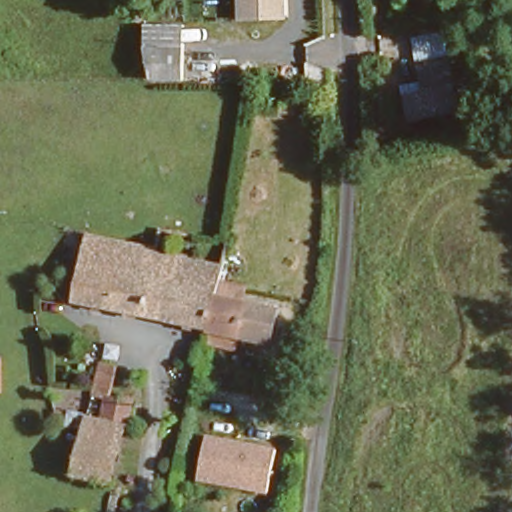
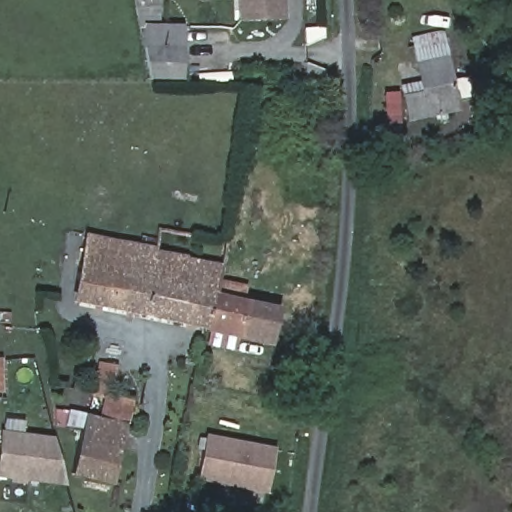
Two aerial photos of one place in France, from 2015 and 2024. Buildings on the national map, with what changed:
unchanged [(284,30),(239,32),(238,0),(283,0),(284,30)]
unchanged [(184,83),(152,83),(143,57),(143,24),(184,25),(184,83)]
unchanged [(443,28),(464,112),(404,123),(398,89),(423,83),(410,39),(443,28)]
unchanged [(73,302),(87,235),(122,242),(126,223),(160,229),(152,274),(121,267),(120,272),(102,267),(94,306),(73,302)]
unchanged [(102,267),(120,272),(121,267),(152,274),(160,229),(194,234),(192,260),(221,266),(215,298),(210,329),(94,306),(102,267)]
unchanged [(212,347),(215,331),(210,329),(215,298),(269,307),(280,309),(274,343),(263,340),(241,336),(238,351),(212,347)]
unchanged [(1,394),(0,394),(0,359),(2,359),(1,394)]
unchanged [(88,392),(94,364),(106,367),(100,394),(128,400),(123,426),(84,418),(88,392)]
unchanged [(79,427),(81,417),(84,418),(123,426),(144,431),(130,489),(68,474),(79,427)]
new [(0,430),(53,437),(66,487),(0,477),(0,434),(0,430)]
unchanged [(271,494),(236,487),(201,480),(210,438),(243,445),(279,452),(271,494)]

